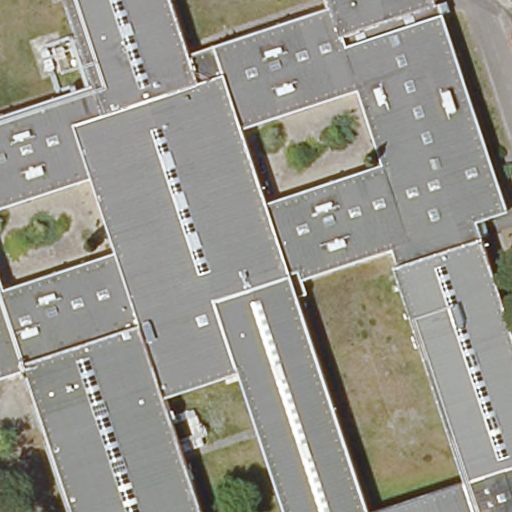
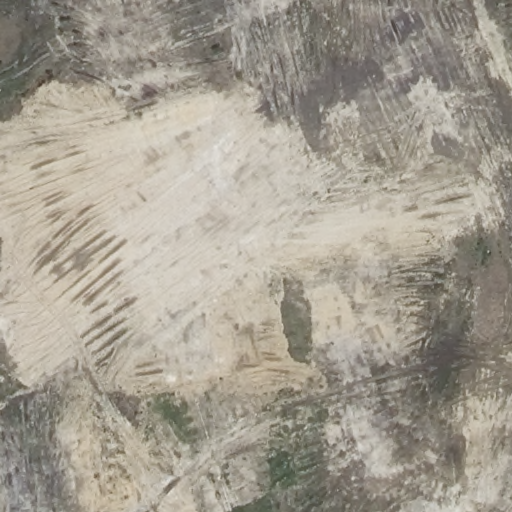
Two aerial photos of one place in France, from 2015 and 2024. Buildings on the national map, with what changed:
demolished [(59,0),(168,0),(187,56),(197,88),(100,120),(89,89),(59,0)]
demolished [(343,39),(334,41),(324,11),(320,0),(430,0),(433,10),(343,39)]
demolished [(212,49),(324,11),(334,41),(343,39),(433,10),(470,111),(497,188),(272,228),(212,49)]
demolished [(197,88),(187,56),(212,49),(272,228),(254,231),(143,251),(100,120),(197,88)]
demolished [(89,89),(100,120),(69,130),(137,330),(17,369),(21,379),(0,386),(0,118),(89,89)]
demolished [(100,120),(143,251),(254,231),(272,228),(497,188),(508,220),(484,227),(470,231),(473,243),(512,351),(512,512),(380,512),(460,487),(392,273),(387,259),(299,290),(293,292),(367,512),(281,512),(234,369),(158,394),(198,512),(63,512),(21,379),(17,369),(137,330),(69,130),(100,120)]

